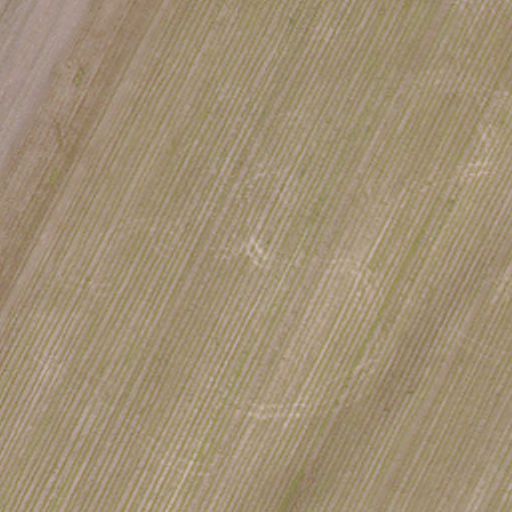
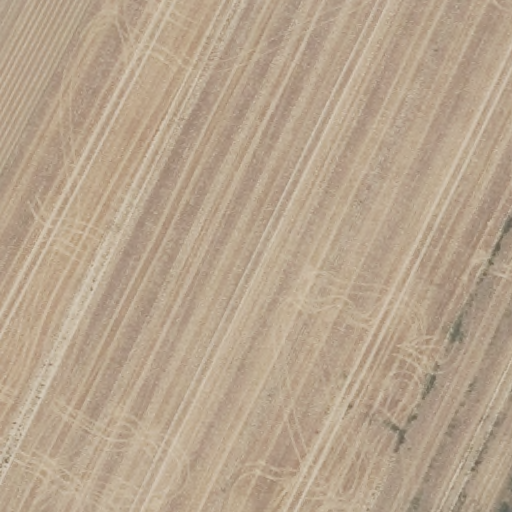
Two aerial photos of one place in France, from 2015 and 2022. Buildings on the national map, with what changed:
[]

